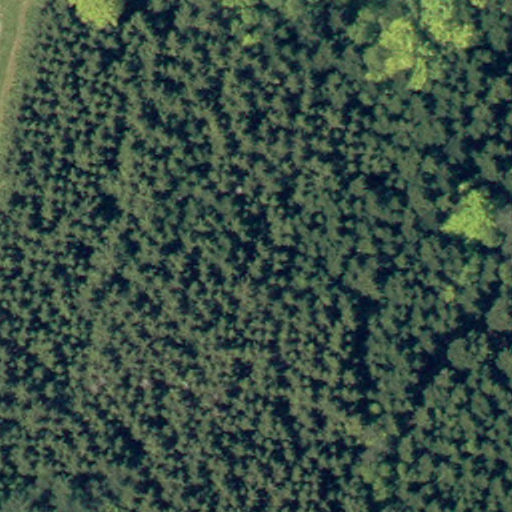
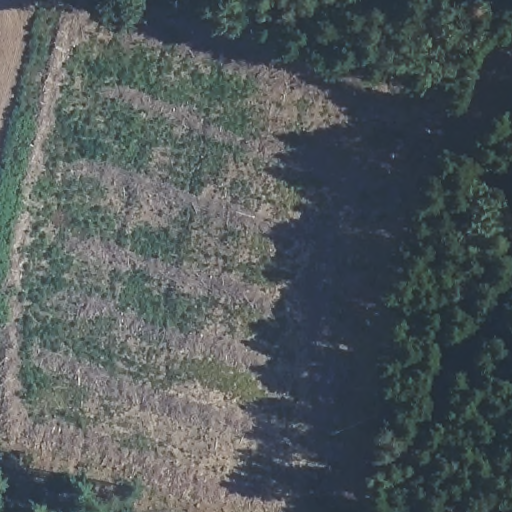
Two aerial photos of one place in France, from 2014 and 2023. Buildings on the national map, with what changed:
[]

